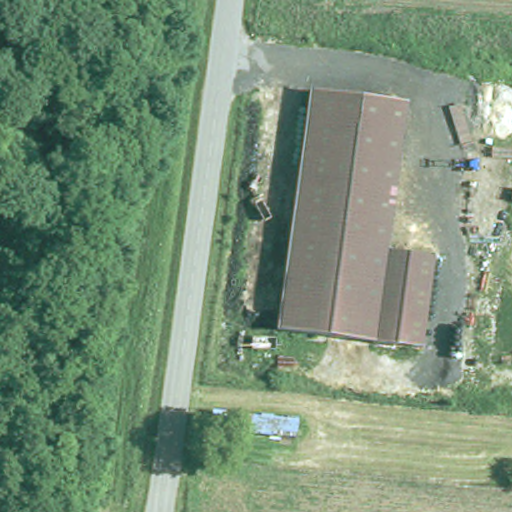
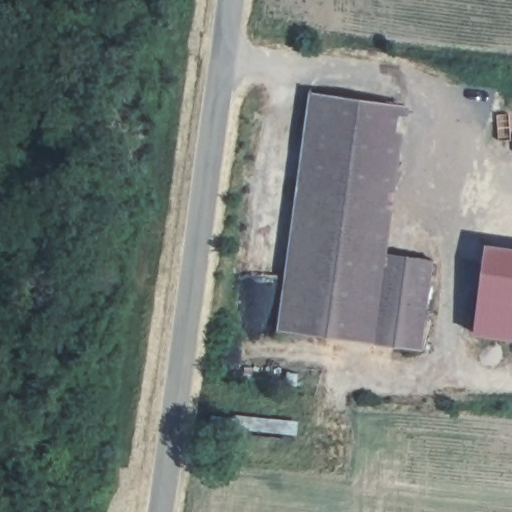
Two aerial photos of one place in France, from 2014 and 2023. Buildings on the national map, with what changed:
unchanged [(405,100),(387,247),(437,254),(425,344),(279,324),(309,87),(405,100)]
new [(512,274),(512,336),(475,331),(482,270),(512,274)]

